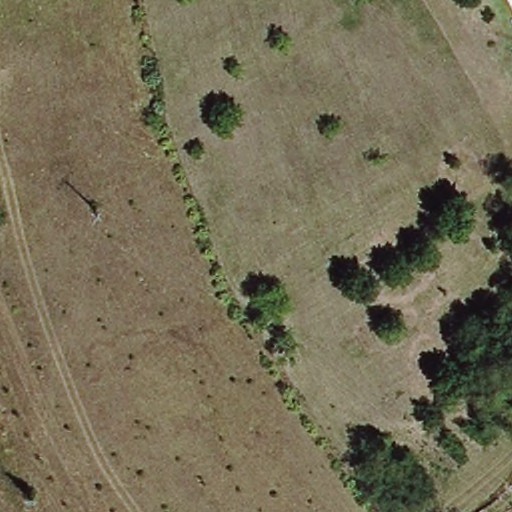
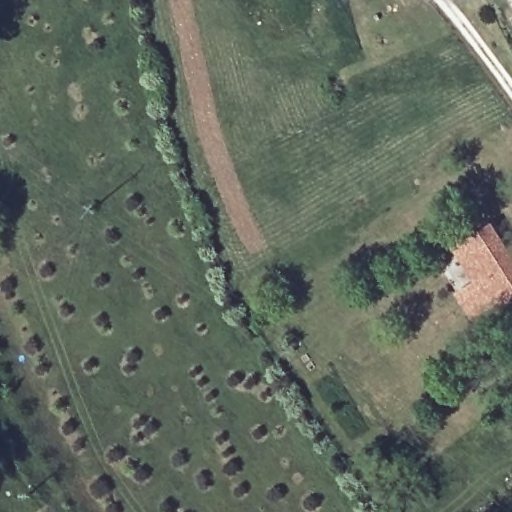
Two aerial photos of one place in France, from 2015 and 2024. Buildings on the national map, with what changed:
new [(492,222),(510,249),(512,247),(512,301),(475,324),(437,258),(492,222)]

